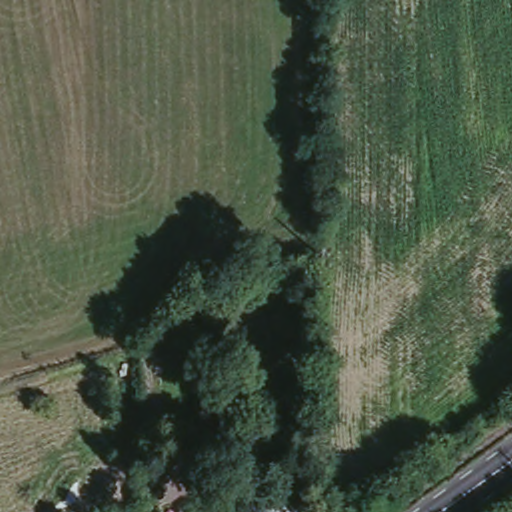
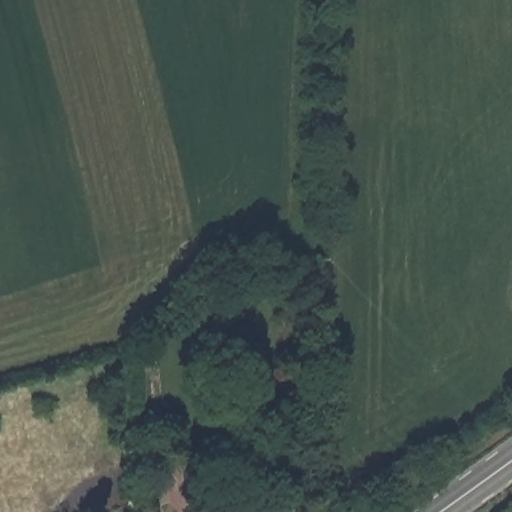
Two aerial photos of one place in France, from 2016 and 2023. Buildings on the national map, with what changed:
unchanged [(307,489),(307,500),(298,500),(297,490),(307,489)]
unchanged [(272,497),(277,504),(284,497),(294,512),(255,512),(254,511),(272,497)]

